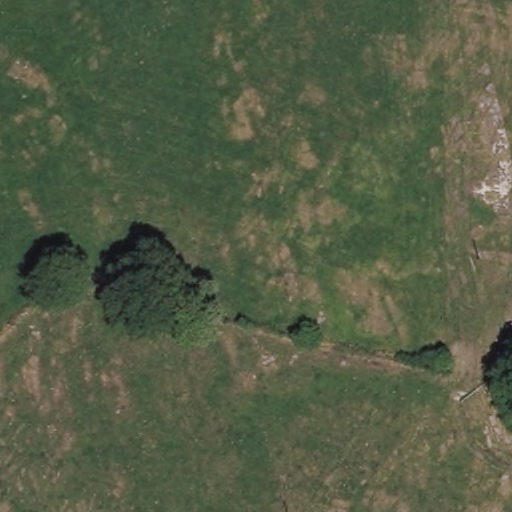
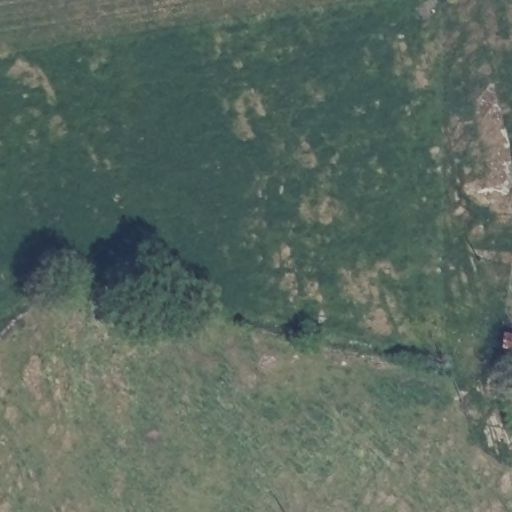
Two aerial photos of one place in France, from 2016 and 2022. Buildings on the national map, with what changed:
[]

